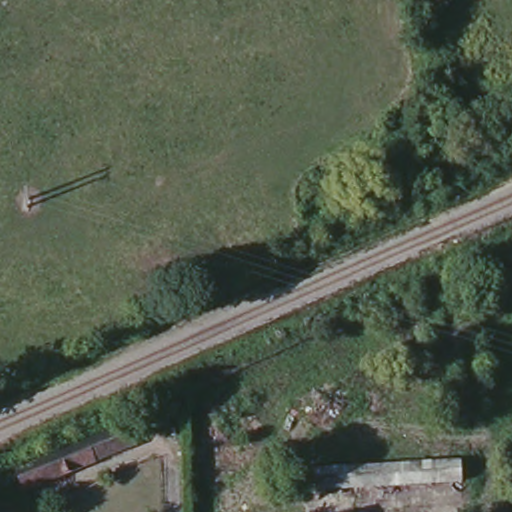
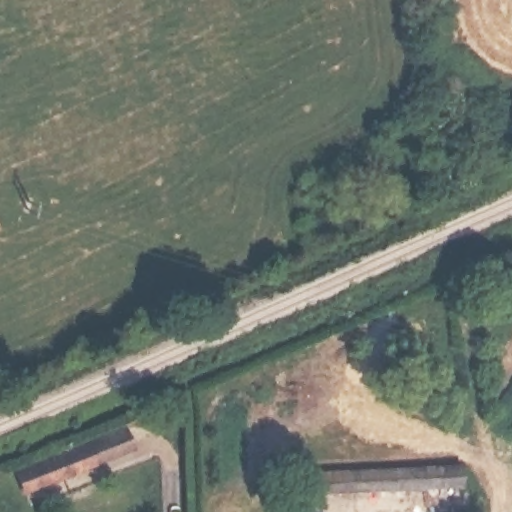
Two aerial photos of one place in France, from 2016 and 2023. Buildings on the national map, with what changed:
unchanged [(91,437),(126,424),(136,448),(102,462),(91,437)]
unchanged [(301,470),(456,463),(457,484),(302,493),(301,470)]

